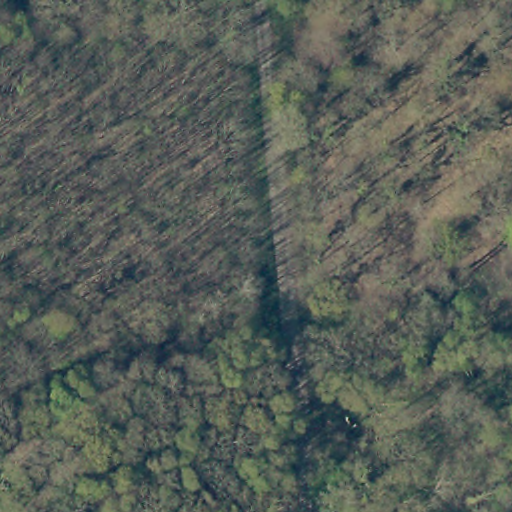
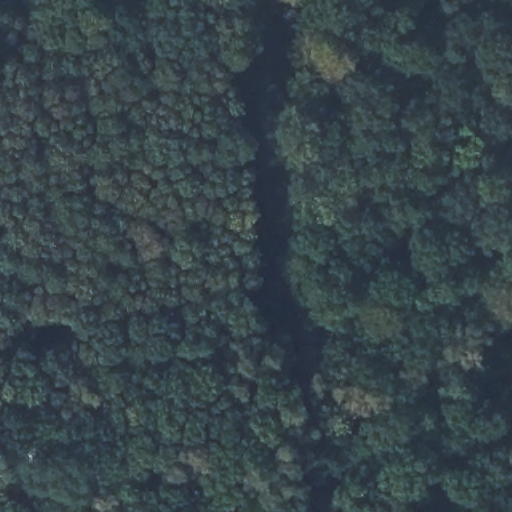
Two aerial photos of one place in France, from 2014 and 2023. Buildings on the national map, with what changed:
[]

